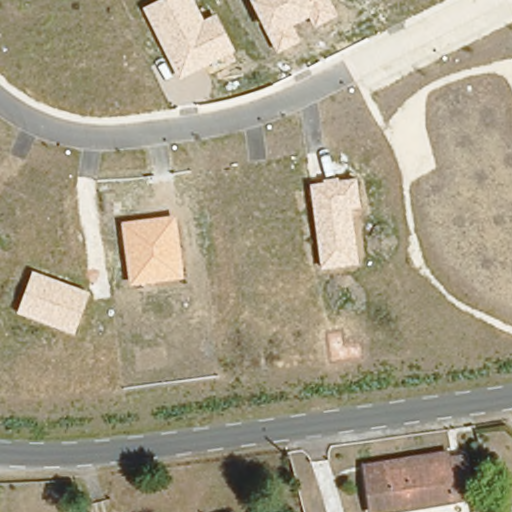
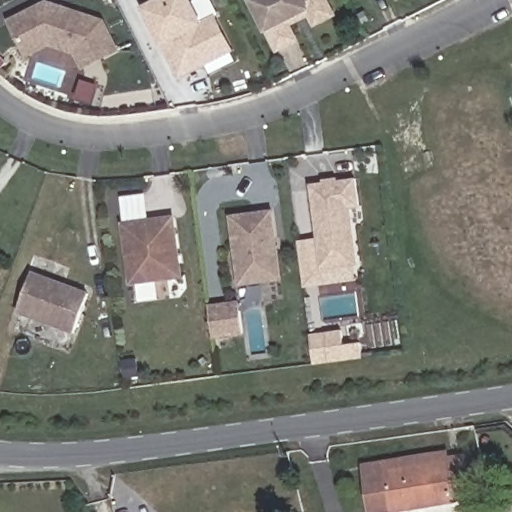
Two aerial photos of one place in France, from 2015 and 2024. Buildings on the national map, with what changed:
new [(81,70),(75,52),(49,46),(25,55),(7,20),(46,0),(105,20),(121,50),(81,70)]
unchanged [(180,80),(145,6),(157,0),(194,0),(205,21),(216,15),(234,50),(180,80)]
unchanged [(315,26),(310,15),(291,25),(300,42),(277,54),(250,0),(329,0),(337,15),(315,26)]
unchanged [(360,207),(351,210),(357,264),(321,270),(311,185),(321,182),(322,178),(335,176),(336,180),(355,177),(360,207)]
new [(230,215),(272,210),(281,281),(239,286),(230,215)]
unchanged [(182,280),(130,285),(125,221),(175,217),(182,280)]
unchanged [(75,335),(16,313),(31,271),(90,292),(75,335)]
new [(243,335),(212,339),(209,304),(239,301),(243,335)]
new [(342,346),(360,344),(361,358),(312,364),(308,334),(342,330),(342,346)]
unchanged [(471,496),(373,510),(366,470),(365,459),(446,447),(448,458),(465,456),(471,496)]
unchanged [(4,512),(0,512),(0,506),(4,512)]

